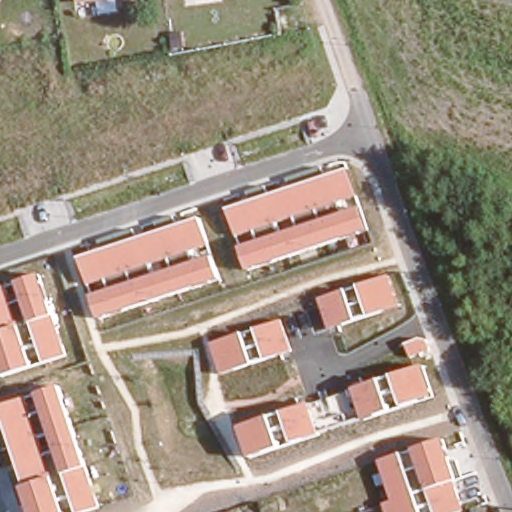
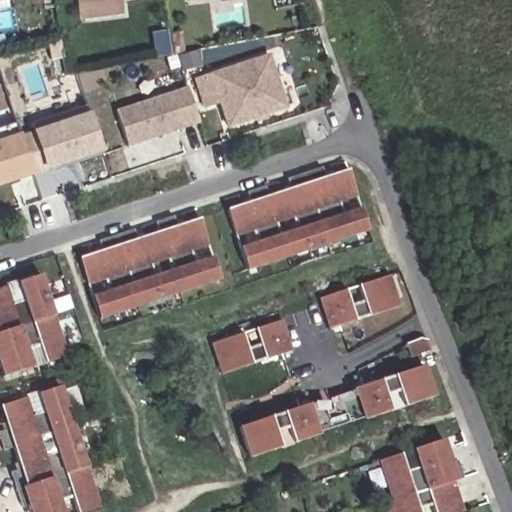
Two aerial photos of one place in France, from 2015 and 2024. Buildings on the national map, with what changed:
demolished [(75,0),(115,0),(76,6),(75,0)]
new [(78,20),(75,0),(120,0),(122,14),(78,20)]
new [(267,55),(287,109),(225,130),(219,105),(202,109),(194,80),(267,55)]
new [(187,89),(199,126),(127,148),(115,111),(187,89)]
new [(45,173),(32,131),(87,113),(101,153),(45,173)]
new [(20,133),(22,136),(29,133),(42,173),(0,187),(0,139),(20,133)]
unchanged [(246,271),(238,247),(258,240),(255,230),(237,236),(229,209),(349,170),(360,197),(347,200),(351,209),(363,205),(372,230),(246,271)]
unchanged [(99,320),(91,296),(97,293),(95,283),(89,285),(78,258),(201,219),(210,244),(196,249),(199,259),(215,255),(222,279),(99,320)]
unchanged [(402,307),(328,330),(318,299),(392,275),(402,307)]
unchanged [(52,315),(57,312),(69,356),(1,376),(0,374),(0,289),(40,277),(52,315)]
unchanged [(294,351),(219,375),(209,343),(284,319),(294,351)]
unchanged [(435,396),(252,455),(242,425),(423,365),(435,396)]
unchanged [(85,465),(89,464),(104,507),(88,512),(29,512),(20,486),(25,484),(0,408),(60,387),(85,465)]
unchanged [(459,512),(433,512),(431,506),(421,511),(421,512),(386,512),(382,503),(394,499),(382,460),(444,439),(452,459),(458,457),(464,479),(457,481),(466,510),(459,512)]

